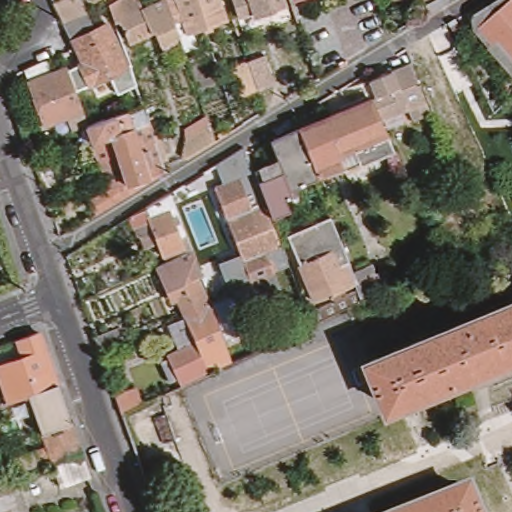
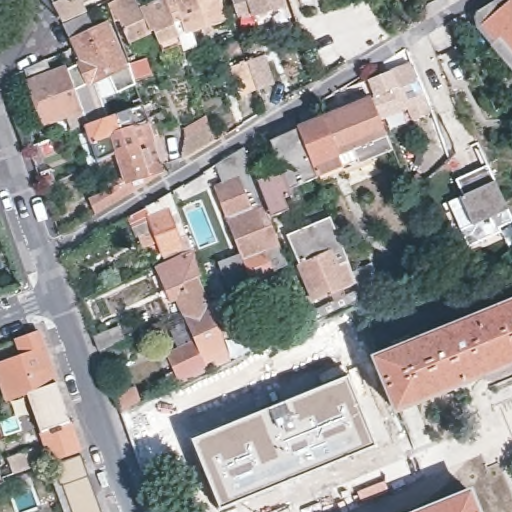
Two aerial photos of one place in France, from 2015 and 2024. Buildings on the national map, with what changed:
unchanged [(67,22),(58,4),(65,0),(88,0),(92,9),(67,22)]
unchanged [(115,0),(147,0),(150,7),(169,0),(171,0),(187,46),(167,53),(160,30),(134,38),(126,17),(118,19),(112,1),(115,0)]
unchanged [(191,34),(180,0),(223,0),(230,20),(191,34)]
unchanged [(287,0),(292,13),(276,19),(271,7),(237,19),(231,0),(287,0)]
unchanged [(499,0),(512,0),(512,57),(481,20),(499,0)]
unchanged [(69,25),(91,13),(98,28),(112,21),(132,64),(94,83),(85,65),(88,63),(79,46),(69,25)]
demolished [(411,48),(421,41),(427,59),(418,63),(411,48)]
demolished [(454,117),(426,61),(447,50),(457,69),(474,60),(491,94),(454,117)]
unchanged [(235,65),(251,59),(268,54),(279,83),(262,89),(246,95),(235,65)]
unchanged [(50,59),(54,73),(70,66),(85,108),(88,115),(91,124),(86,125),(78,128),(75,129),(69,114),(48,123),(28,69),(50,59)]
unchanged [(430,100),(412,107),(391,116),(382,95),(375,78),(413,61),(430,100)]
unchanged [(350,169),(346,164),(321,174),(305,127),(382,95),(391,116),(404,146),(350,169)]
unchanged [(146,101),(160,139),(122,155),(108,161),(104,164),(95,143),(93,144),(86,125),(91,124),(146,101)]
unchanged [(225,130),(188,152),(191,131),(220,115),(225,130)]
unchanged [(281,154),(275,139),(305,127),(321,174),(296,184),(295,184),(295,192),(290,195),(293,206),(275,214),(265,189),(256,165),(281,154)]
unchanged [(100,213),(94,195),(115,183),(108,161),(122,155),(160,139),(170,170),(100,213)]
new [(456,179),(488,164),(512,216),(512,221),(500,227),(502,230),(470,245),(449,202),(463,194),(456,179)]
unchanged [(276,268),(278,273),(255,282),(218,188),(244,178),(250,194),(265,189),(275,214),(275,217),(286,245),(292,262),(276,268)]
unchanged [(155,256),(141,218),(145,215),(142,206),(165,193),(183,245),(155,256)]
unchanged [(401,287),(368,302),(317,325),(313,314),(338,303),(335,295),(320,302),(291,234),(337,216),(361,283),(362,284),(393,268),(401,287)]
unchanged [(202,294),(203,298),(206,304),(182,315),(180,315),(177,317),(170,299),(165,302),(150,264),(153,263),(185,249),(186,252),(202,294)]
unchanged [(417,259),(442,249),(448,263),(423,274),(417,259)]
unchanged [(228,289),(243,328),(218,337),(206,304),(203,298),(228,289)]
unchanged [(380,352),(512,299),(512,361),(402,406),(380,352)]
unchanged [(218,337),(226,359),(175,383),(160,352),(190,338),(180,315),(206,304),(218,337)]
unchanged [(94,337),(120,328),(125,341),(99,352),(94,337)]
unchanged [(43,334),(85,452),(57,461),(33,393),(13,399),(2,367),(27,358),(22,340),(43,334)]
new [(350,372),(377,445),(321,467),(218,510),(190,439),(350,372)]
unchanged [(112,391),(135,383),(140,399),(120,409),(117,402),(112,391)]
unchanged [(46,463),(18,473),(12,456),(40,446),(46,463)]
unchanged [(86,456),(91,472),(35,492),(30,476),(86,456)]
unchanged [(472,493),(480,512),(425,512),(472,493)]

